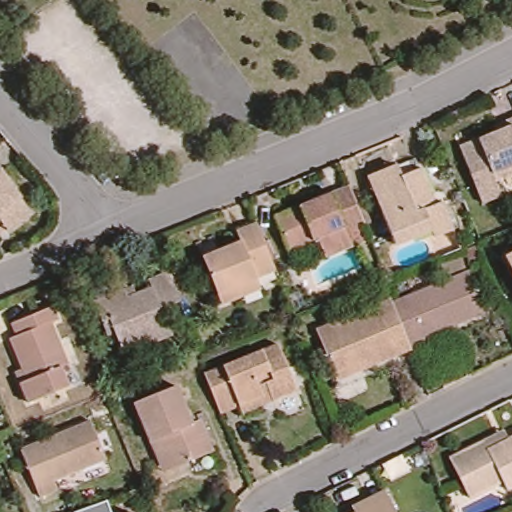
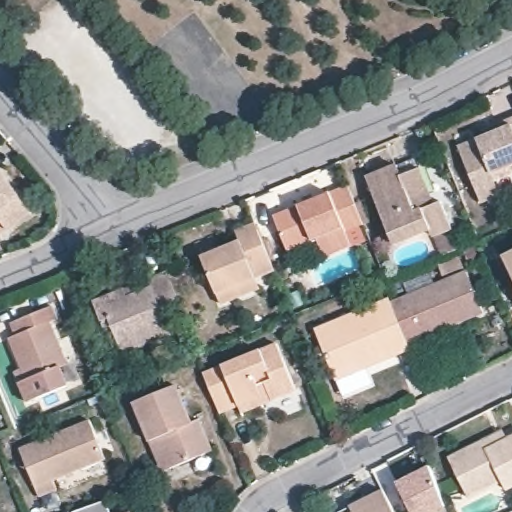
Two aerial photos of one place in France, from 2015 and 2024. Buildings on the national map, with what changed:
unchanged [(508,195),(489,202),(481,181),(467,146),(481,141),(504,132),(501,125),(512,121),(512,177),(502,180),(508,195)]
unchanged [(451,226),(430,234),(426,227),(391,241),(370,193),(368,188),(364,177),(395,164),(411,157),(427,193),(430,202),(438,199),(451,226)]
unchanged [(31,209),(12,221),(7,225),(0,215),(0,165),(31,209)]
unchanged [(324,240),(293,251),(280,216),(354,186),(371,226),(353,233),(359,248),(341,254),(331,259),(324,240)]
unchanged [(240,292),(219,300),(202,257),(235,245),(244,241),(240,231),(257,224),(274,266),(255,273),(259,284),(240,292)]
unchanged [(512,252),(512,263),(508,254),(512,252)]
unchanged [(432,337),(413,345),(395,298),(471,269),(487,308),(455,321),(457,328),(432,337)]
unchanged [(102,320),(95,301),(124,288),(134,284),(137,290),(152,285),(149,277),(168,270),(180,301),(163,308),(173,334),(125,354),(116,331),(108,334),(102,320)]
unchanged [(318,325),(394,296),(395,298),(413,345),(368,362),(337,374),(334,368),(318,325)]
unchanged [(19,330),(15,319),(54,303),(58,314),(54,316),(71,359),(63,361),(72,383),(54,390),(32,400),(23,378),(30,376),(13,333),(19,330)]
unchanged [(243,408),(223,416),(207,376),(285,345),(303,392),(276,403),(247,415),(243,408)]
unchanged [(454,381),(442,387),(438,378),(450,373),(454,381)]
unchanged [(157,442),(142,403),(183,386),(199,424),(205,422),(218,453),(177,470),(170,473),(157,442)]
unchanged [(100,445),(106,460),(57,480),(61,489),(41,497),(22,449),(56,436),(90,423),(100,445)]
unchanged [(503,480),(468,493),(452,451),(487,438),(509,429),(512,437),(512,484),(506,486),(503,480)]
new [(429,467),(446,505),(432,512),(411,512),(396,483),(429,467)]
unchanged [(358,510),(391,494),(394,501),(400,512),(358,512),(358,510)]

